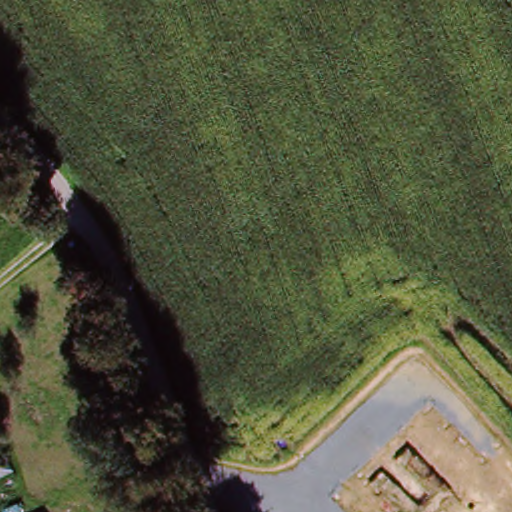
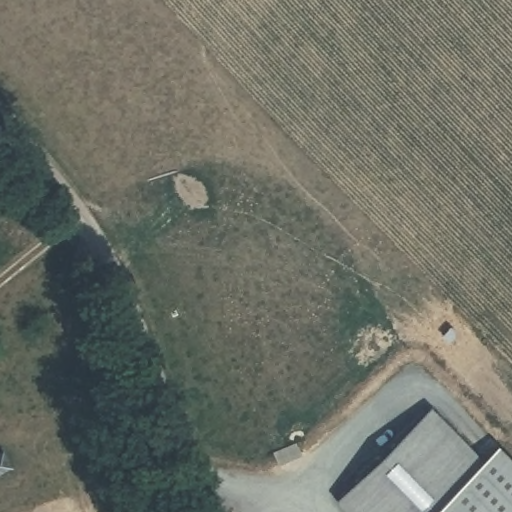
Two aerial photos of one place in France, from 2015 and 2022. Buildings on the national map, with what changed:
new [(339,502),(336,499),(360,476),(431,411),(481,461),(499,443),(512,457),(512,512),(348,512),(346,510),(339,502)]
unchanged [(0,454),(3,452),(15,470),(0,479),(0,454)]

